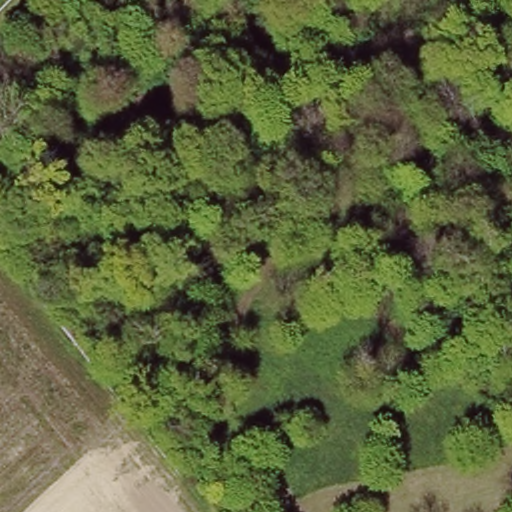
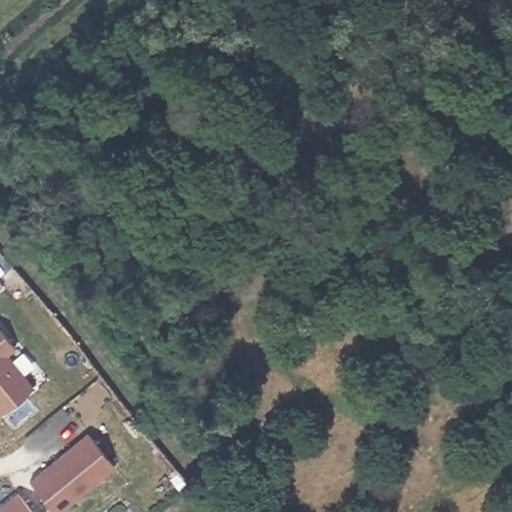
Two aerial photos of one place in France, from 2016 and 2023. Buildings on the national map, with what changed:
new [(34,388),(0,416),(0,331),(15,350),(8,355),(34,388)]
new [(60,512),(55,512),(29,480),(86,432),(116,469),(60,512)]
new [(18,492),(33,512),(0,512),(0,507),(18,492)]

